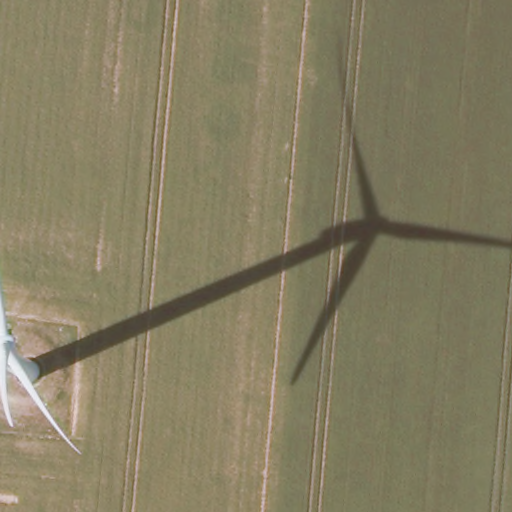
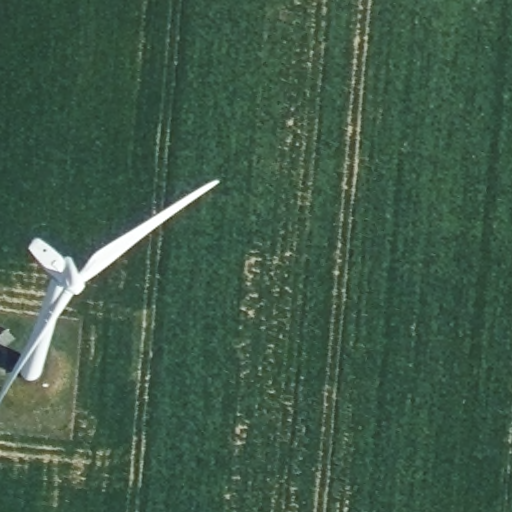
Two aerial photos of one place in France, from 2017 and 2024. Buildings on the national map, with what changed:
unchanged [(0,351),(0,342),(8,334),(17,342),(4,355),(0,351)]

